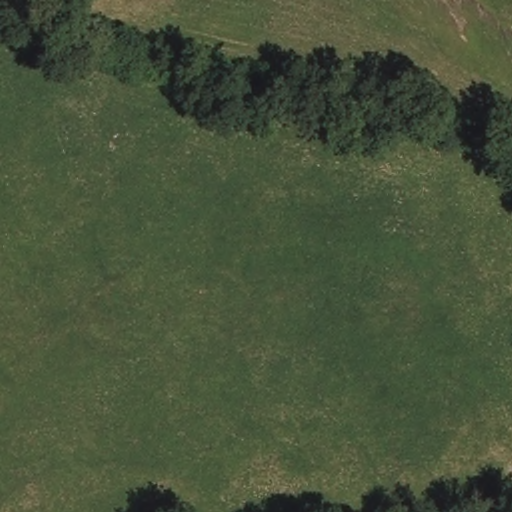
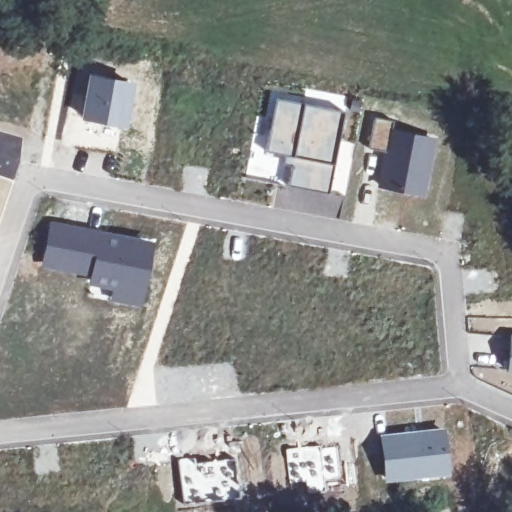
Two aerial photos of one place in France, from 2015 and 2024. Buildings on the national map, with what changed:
new [(88,72),(135,81),(125,126),(80,118),(88,72)]
new [(276,98),(343,110),(328,192),(287,183),(292,156),(266,150),(276,98)]
new [(374,118),(391,122),(390,127),(438,137),(425,197),(379,185),(385,151),(368,148),(374,118)]
new [(49,219),(153,239),(140,307),(108,299),(110,290),(87,285),(89,277),(40,267),(49,219)]
new [(509,333),(512,333),(512,373),(506,372),(509,333)]
new [(445,427),(451,476),(385,483),(378,433),(445,427)]

